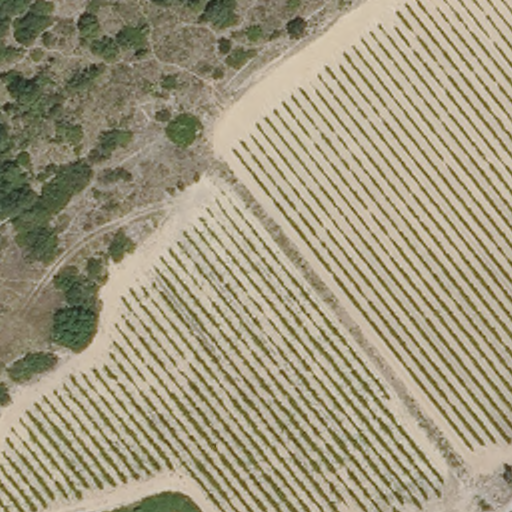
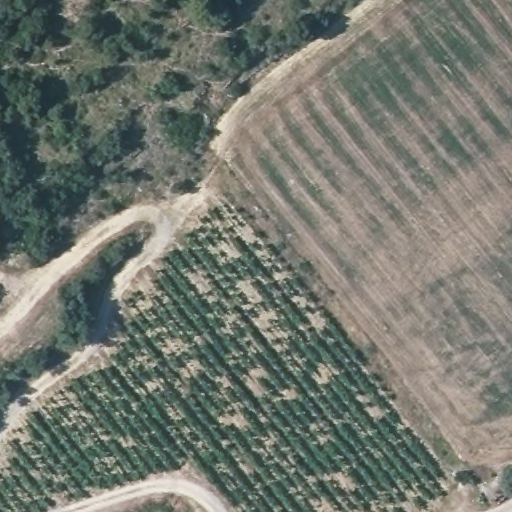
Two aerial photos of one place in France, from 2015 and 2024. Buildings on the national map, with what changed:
[]

